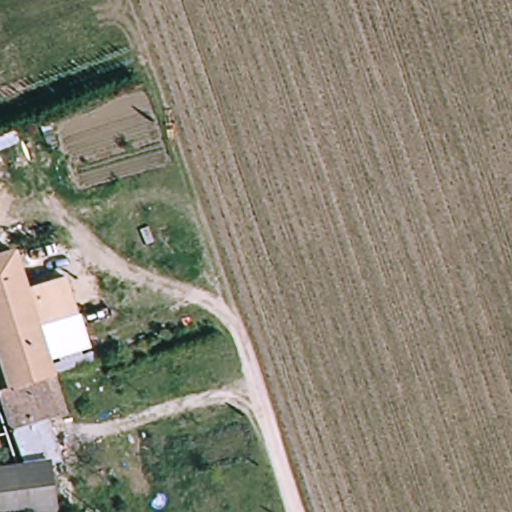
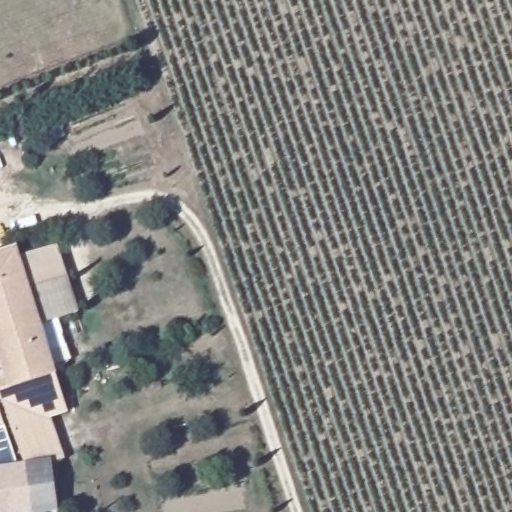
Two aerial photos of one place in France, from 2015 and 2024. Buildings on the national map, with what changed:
unchanged [(17,256),(30,295),(69,284),(95,369),(56,381),(7,397),(0,373),(0,261),(17,256)]
unchanged [(0,406),(0,399),(7,397),(56,381),(67,421),(48,427),(8,438),(0,406)]
unchanged [(51,470),(51,468),(28,471),(8,438),(48,427),(60,468),(51,470)]
unchanged [(51,468),(51,470),(57,512),(34,512),(28,471),(51,468)]
unchanged [(28,471),(34,512),(0,512),(0,474),(28,471)]

